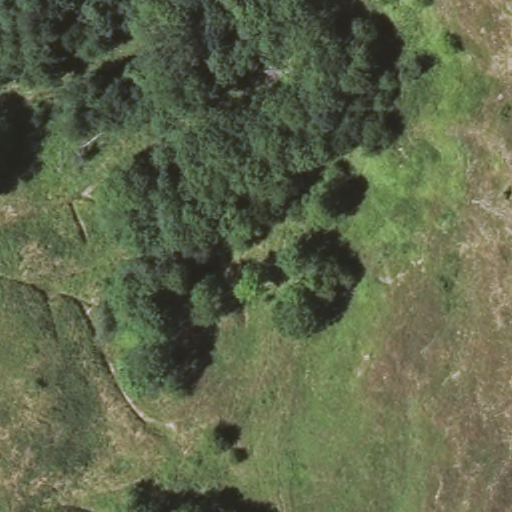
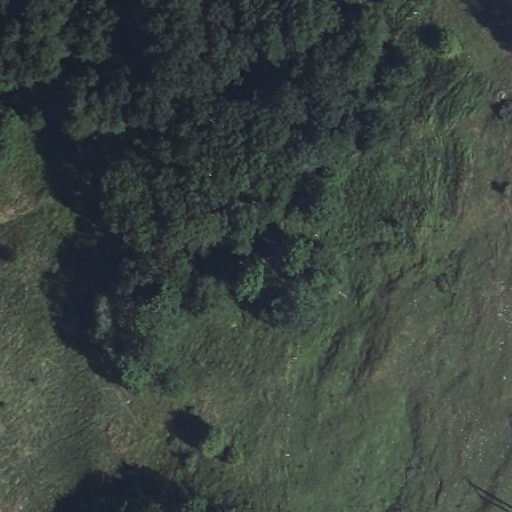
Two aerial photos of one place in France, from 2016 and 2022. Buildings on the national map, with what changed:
[]

